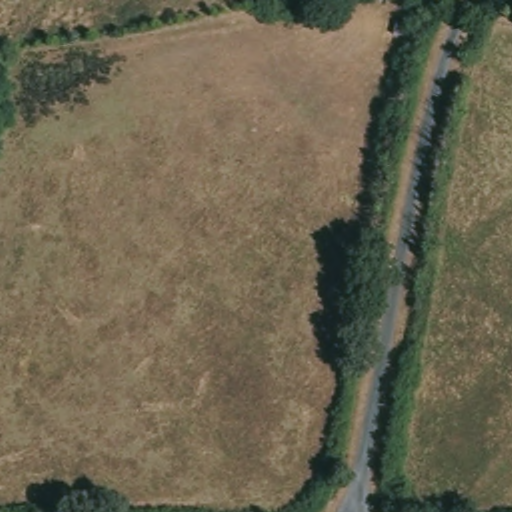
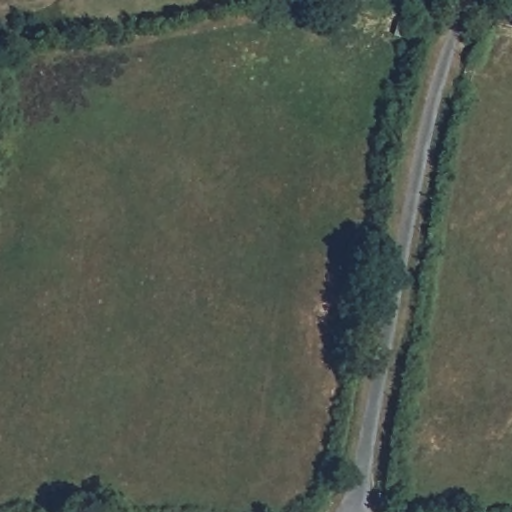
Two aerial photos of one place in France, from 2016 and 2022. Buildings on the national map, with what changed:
[]

